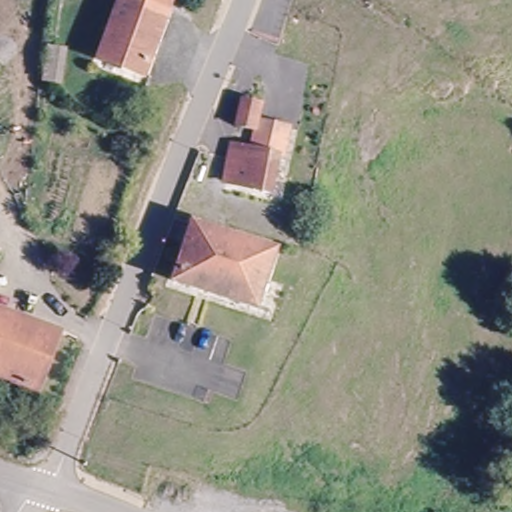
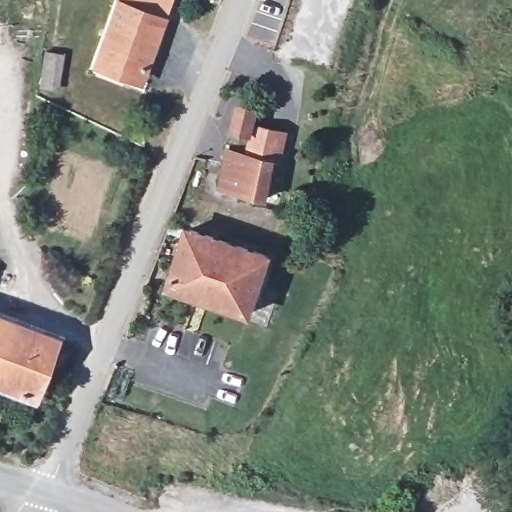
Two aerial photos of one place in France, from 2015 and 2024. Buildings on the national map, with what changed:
unchanged [(133,72),(93,57),(116,0),(164,0),(158,14),(133,72)]
unchanged [(262,105),(253,132),(231,125),(239,97),(262,105)]
unchanged [(258,124),(287,133),(277,161),(275,161),(274,160),(270,173),(259,205),(213,190),(227,147),(245,152),(248,153),(258,124)]
unchanged [(248,314),(175,286),(194,229),(270,255),(268,262),(248,314)]
unchanged [(0,310),(54,331),(32,389),(0,377),(0,310)]

